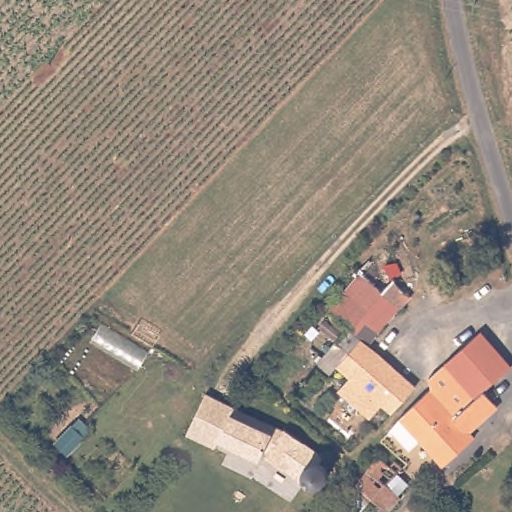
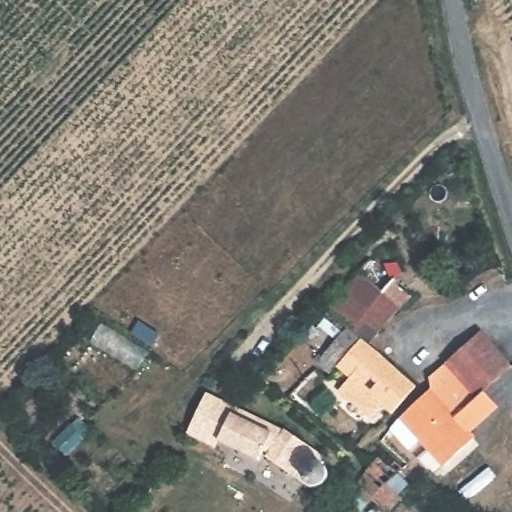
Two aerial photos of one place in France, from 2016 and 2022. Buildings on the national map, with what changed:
unchanged [(422,247),(413,256),(391,234),(401,222),(422,247)]
unchanged [(387,253),(390,267),(395,266),(402,278),(396,282),(396,286),(412,299),(401,311),(361,278),(358,276),(384,251),(387,253)]
unchanged [(384,412),(374,423),(345,399),(355,387),(338,371),(325,361),(328,357),(317,347),(324,339),(315,331),(330,313),(361,278),(401,311),(380,335),(368,324),(357,336),(363,341),(370,347),(382,357),(418,389),(392,419),(384,412)]
unchanged [(465,429),(471,435),(441,464),(418,442),(407,453),(390,435),(400,422),(422,401),(433,392),(430,384),(428,383),(464,350),(481,335),(507,361),(490,377),(479,388),(492,402),(465,429)]
unchanged [(267,430),(234,413),(230,411),(222,426),(216,438),(220,439),(215,449),(186,436),(206,393),(270,423),(267,430)]
unchanged [(325,462),(328,466),(329,470),(328,475),(326,478),(325,479),(320,482),(314,483),(308,483),(264,454),(267,451),(261,448),(260,451),(256,458),(220,439),(216,438),(222,426),(230,411),(234,413),(267,430),(270,423),(281,429),(282,427),(321,453),(318,458),(322,459),(325,462)]
unchanged [(337,495),(334,493),(346,476),(356,484),(378,457),(391,467),(396,461),(404,468),(391,484),(405,497),(392,512),(389,512),(374,499),(362,512),(349,512),(346,506),(337,495)]

